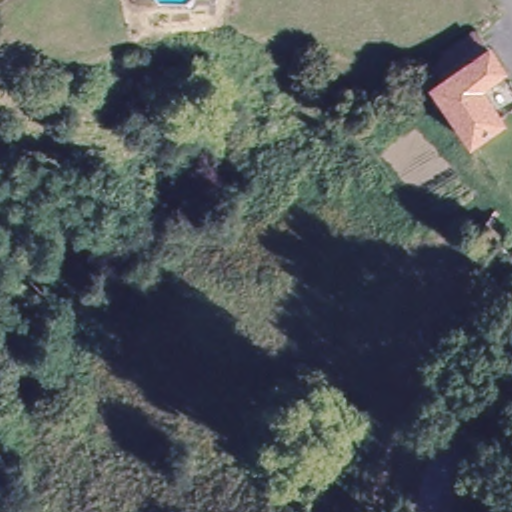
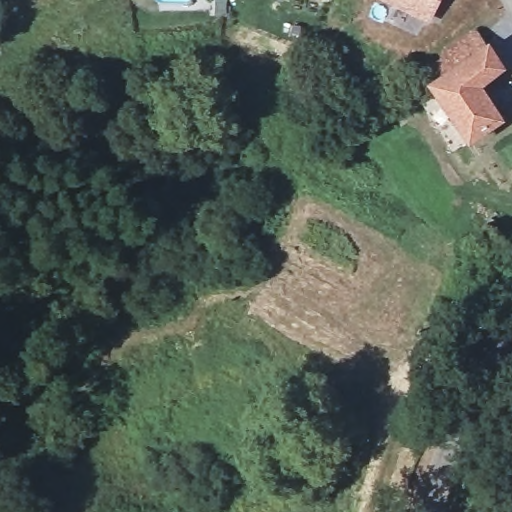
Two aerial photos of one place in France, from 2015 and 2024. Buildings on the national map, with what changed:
new [(424,22),(380,0),(435,0),(424,22)]
unchanged [(503,126),(465,155),(422,84),(489,34),(509,75),(481,96),(503,126)]

